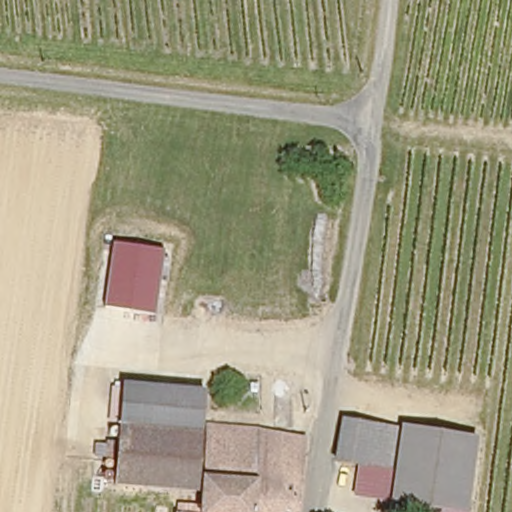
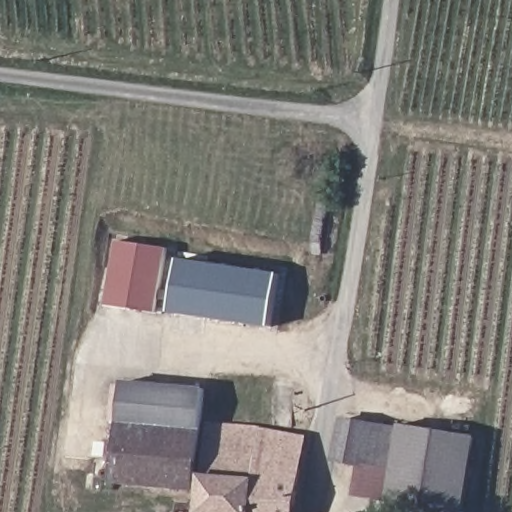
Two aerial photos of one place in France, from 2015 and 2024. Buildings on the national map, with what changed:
unchanged [(166,246),(159,305),(158,311),(109,302),(109,298),(117,237),(166,246)]
new [(277,273),(269,328),(169,314),(177,259),(277,273)]
unchanged [(115,439),(121,440),(123,420),(113,419),(116,386),(126,387),(126,382),(206,391),(201,455),(208,456),(207,467),(201,466),(199,490),(118,481),(120,455),(115,453),(115,439)]
unchanged [(398,426),(393,466),(341,457),(346,418),(398,426)]
unchanged [(381,496),(393,498),(403,422),(464,432),(476,435),(466,511),(456,510),(406,501),(405,512),(379,512),(380,509),(381,496)]
unchanged [(294,512),(203,512),(207,467),(208,456),(210,424),(261,432),(261,436),(308,444),(294,512)]
new [(353,497),(358,460),(393,466),(397,466),(393,498),(381,496),(381,500),(353,497)]

